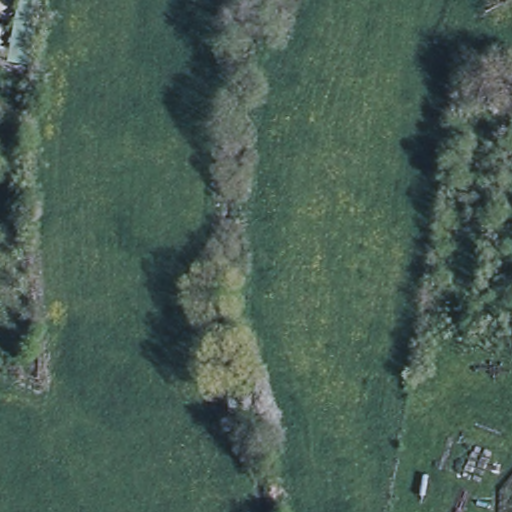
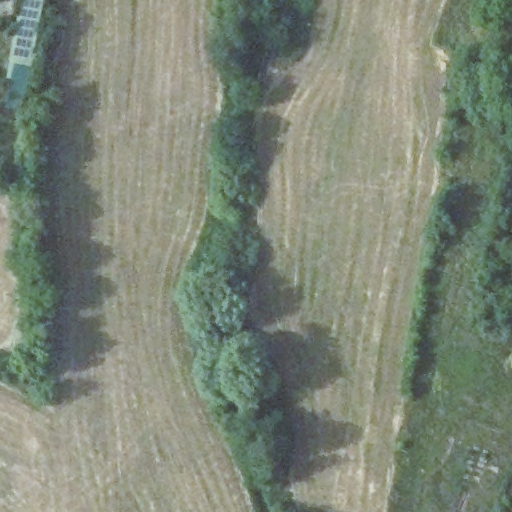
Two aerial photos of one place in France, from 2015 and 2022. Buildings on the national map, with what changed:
unchanged [(135,455),(143,461),(132,475),(123,469),(135,455)]

